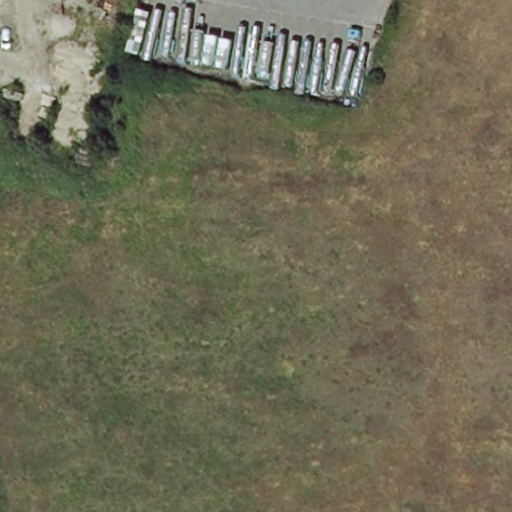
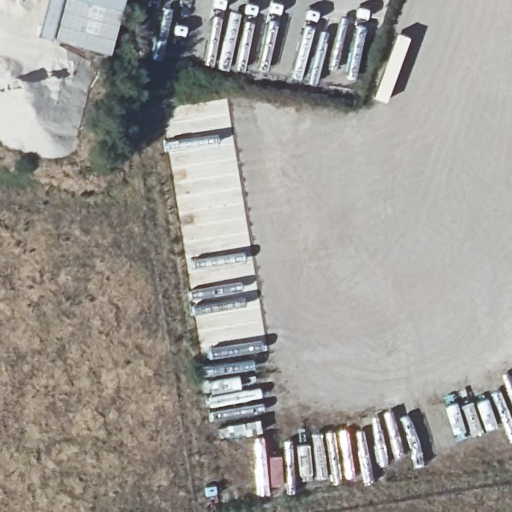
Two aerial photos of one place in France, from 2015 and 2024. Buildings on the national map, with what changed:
new [(110,53),(53,37),(37,34),(46,0),(124,0),(110,53)]

